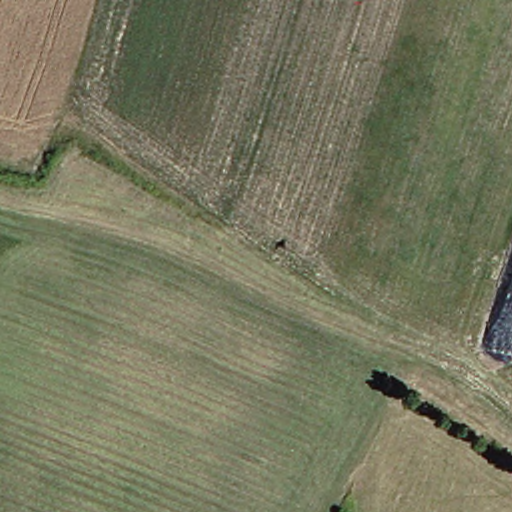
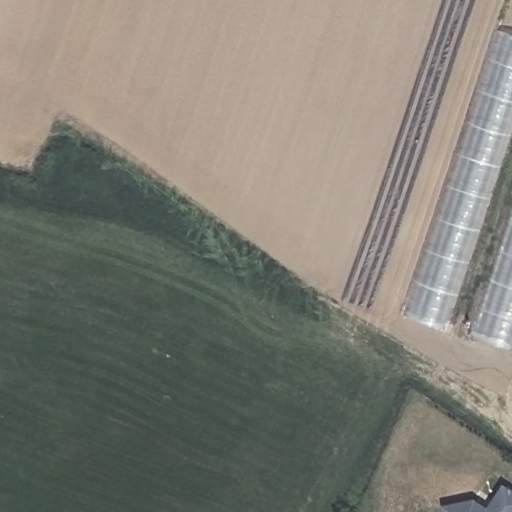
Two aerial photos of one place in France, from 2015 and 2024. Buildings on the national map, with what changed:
new [(405,315),(498,29),(512,33),(512,141),(450,329),(405,315)]
new [(512,348),(474,335),(512,221),(512,348)]
new [(443,506),(475,501),(490,510),(503,486),(512,492),(512,512),(445,512),(443,506)]

